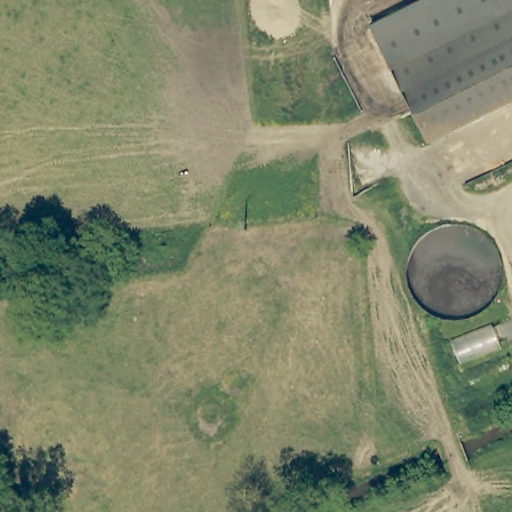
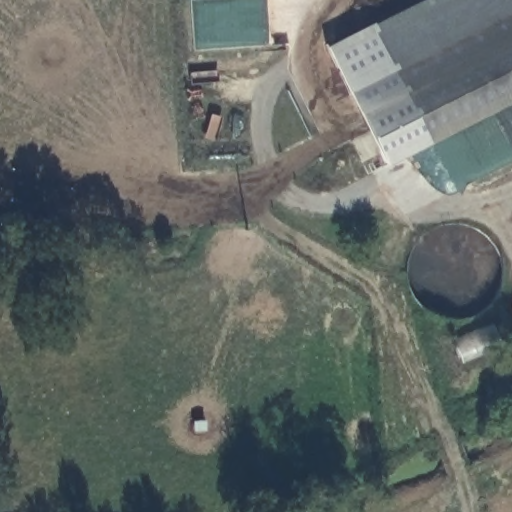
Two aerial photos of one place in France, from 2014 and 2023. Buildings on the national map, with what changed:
unchanged [(432,141),(385,49),(373,27),(427,0),(512,0),(512,100),(432,141)]
new [(385,49),(432,141),(387,167),(327,49),(373,27),(385,49)]

